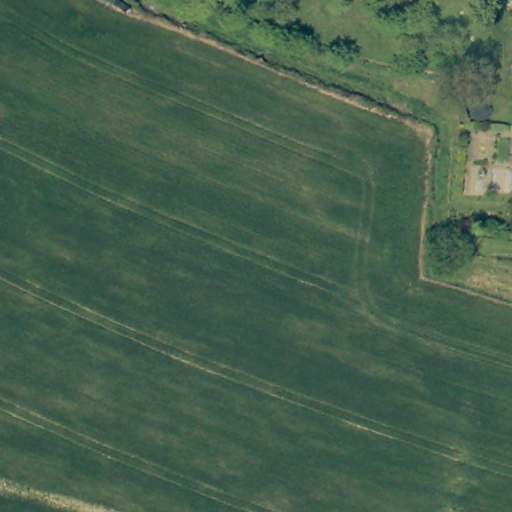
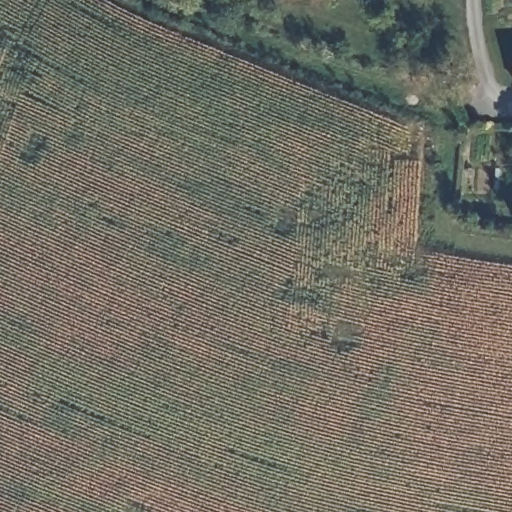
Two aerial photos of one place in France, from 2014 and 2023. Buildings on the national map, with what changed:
[]

